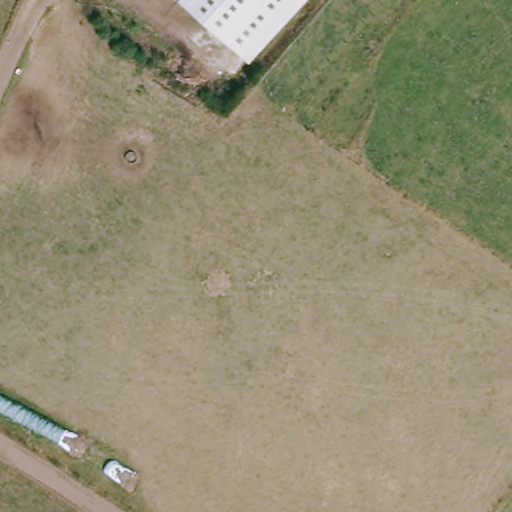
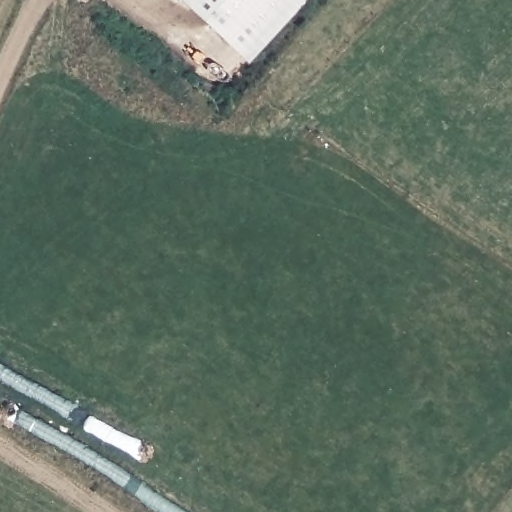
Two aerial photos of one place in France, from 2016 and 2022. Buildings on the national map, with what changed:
unchanged [(250,66),(181,0),(311,0),(250,66)]

